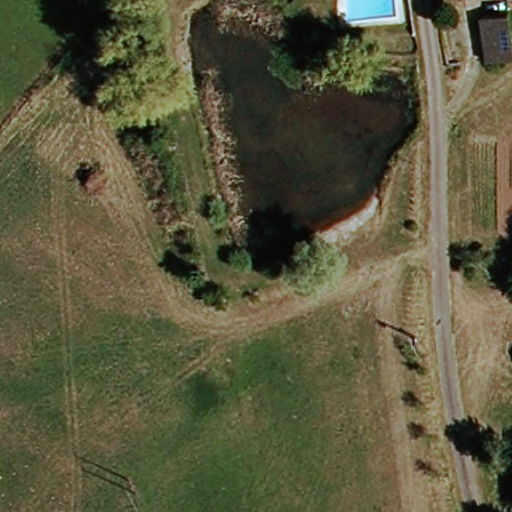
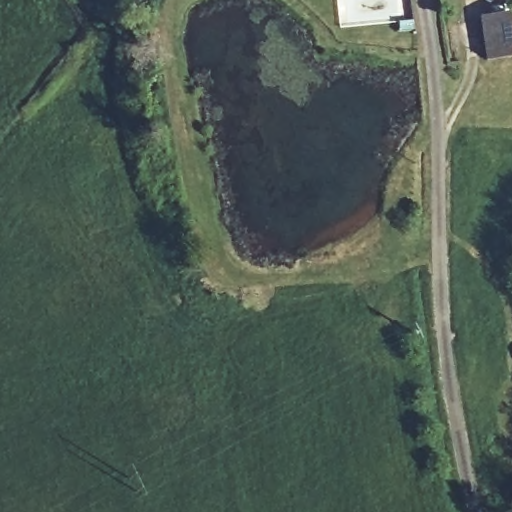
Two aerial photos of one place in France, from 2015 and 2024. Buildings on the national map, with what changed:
unchanged [(492,61),(487,18),(512,15),(512,59),(492,61)]

